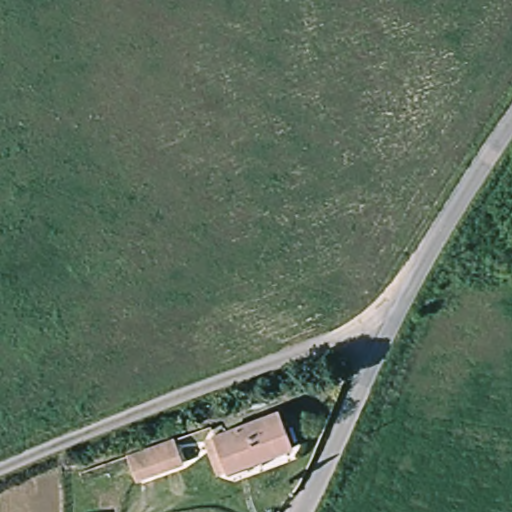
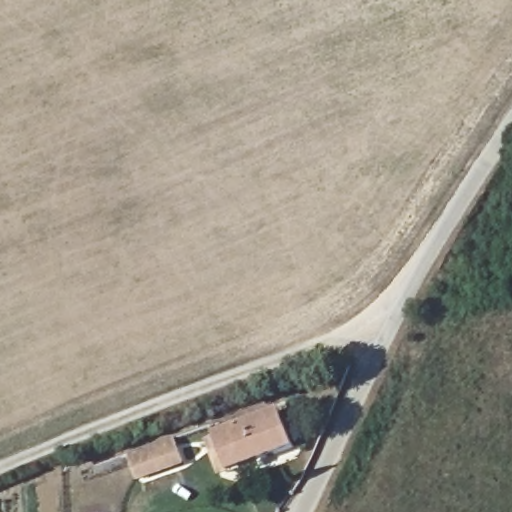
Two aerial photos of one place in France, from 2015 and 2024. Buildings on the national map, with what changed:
unchanged [(281,411),(294,450),(228,472),(217,438),(281,411)]
unchanged [(125,457),(176,440),(184,464),(135,481),(125,457)]

